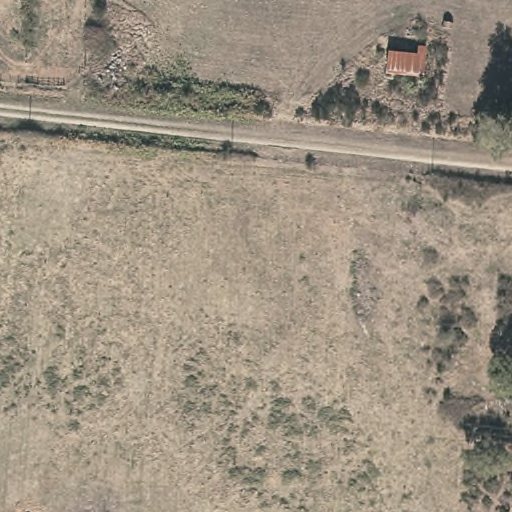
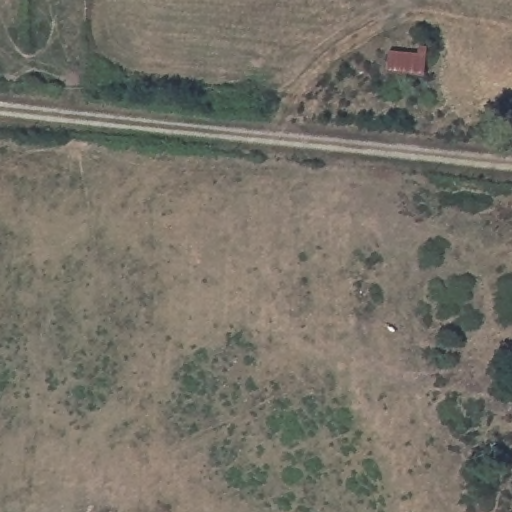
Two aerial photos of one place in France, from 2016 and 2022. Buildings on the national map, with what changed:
unchanged [(418,56),(420,47),(428,47),(426,75),(387,72),(388,55),(418,56)]

